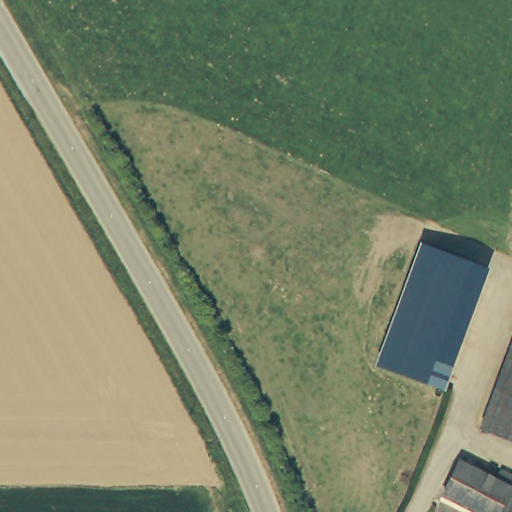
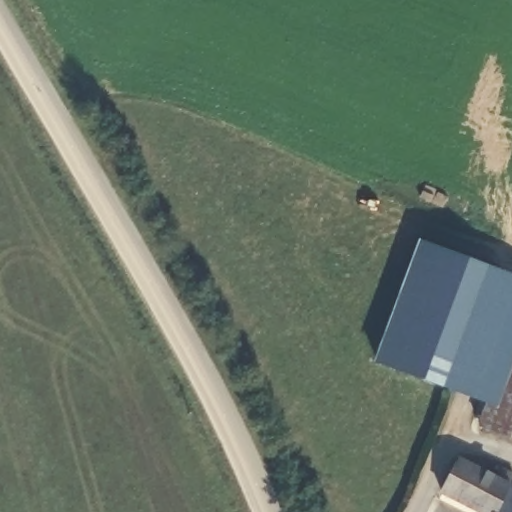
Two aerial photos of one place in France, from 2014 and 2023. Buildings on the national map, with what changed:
unchanged [(420,244),(486,268),(443,391),(375,365),(420,244)]
new [(512,276),(512,320),(493,370),(481,403),(443,391),(486,268),(512,276)]
unchanged [(512,381),(493,370),(512,320),(512,381)]
unchanged [(493,370),(512,381),(512,437),(475,423),(493,370)]
unchanged [(445,500),(458,463),(490,479),(497,465),(512,472),(512,479),(507,488),(512,491),(512,512),(470,512),(445,500)]

